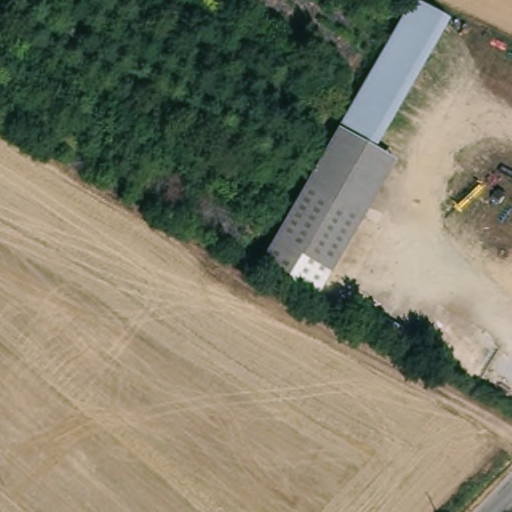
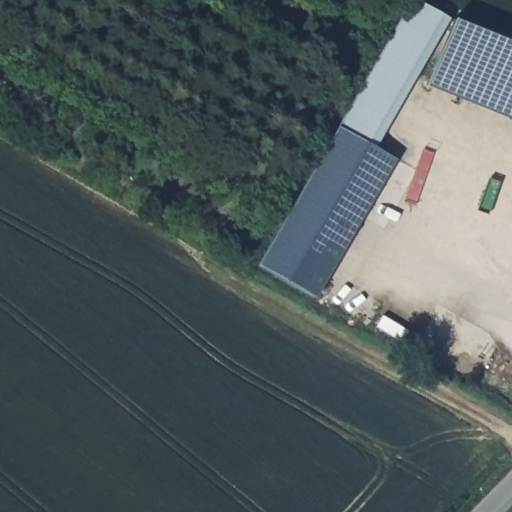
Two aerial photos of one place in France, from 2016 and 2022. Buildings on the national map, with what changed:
unchanged [(305,257),(290,283),(261,266),(415,0),(421,0),(453,19),(377,148),(399,160),(333,273),(305,257)]
new [(453,19),(512,43),(512,120),(426,86),(453,19)]

